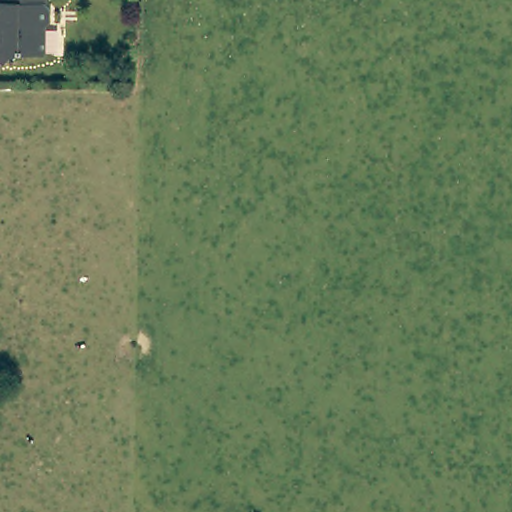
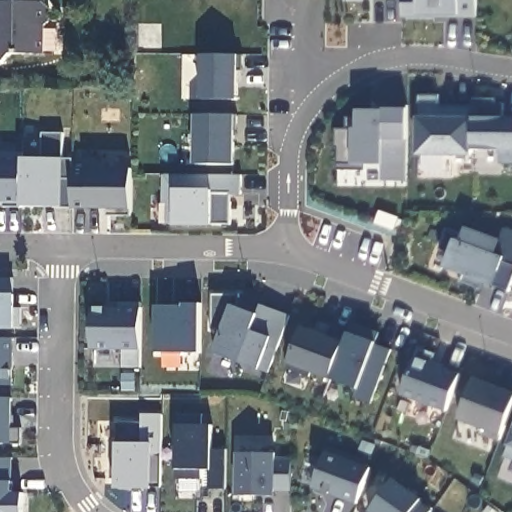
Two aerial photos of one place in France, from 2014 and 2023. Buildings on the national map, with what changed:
unchanged [(46,55),(14,55),(2,66),(0,63),(0,0),(46,0),(46,9),(49,9),(46,55)]
new [(476,20),(401,18),(401,0),(476,0),(476,20)]
new [(203,54),(245,55),(244,71),(240,71),(239,100),(203,99),(203,54)]
new [(500,152),(473,151),(473,157),(420,156),(417,156),(418,117),(419,97),(439,96),(439,107),(473,106),(473,100),(494,100),(495,105),(504,105),(502,118),(512,118),(512,165),(502,165),(500,152)]
new [(338,128),(349,128),(349,117),(360,117),(360,108),(373,108),(373,115),(383,115),(384,105),(410,106),(409,181),(384,181),(384,164),(368,164),(368,171),(340,170),(340,149),(338,149),(338,128)]
new [(234,164),(193,165),(194,113),(234,114),(234,164)]
new [(24,204),(24,159),(43,159),(43,133),(64,134),(64,159),(74,159),(74,169),(74,209),(55,208),(55,207),(23,207),(24,204)]
new [(2,158),(2,153),(24,153),(24,159),(24,204),(23,207),(23,208),(5,208),(5,203),(0,203),(0,158),(2,158)]
new [(74,169),(131,169),(131,217),(107,216),(107,209),(74,209),(74,169)]
new [(166,174),(243,175),(243,194),(227,194),(227,202),(233,203),(233,225),(170,224),(171,203),(166,203),(166,174)]
new [(487,283),(484,291),(463,283),(465,275),(447,268),(453,254),(441,250),(449,229),(467,235),(470,228),(502,240),(506,228),(512,230),(512,291),(511,292),(496,286),(487,283)]
new [(14,279),(14,302),(10,302),(9,309),(22,309),(21,329),(0,329),(0,279),(14,279)]
new [(214,294),(242,294),(241,308),(260,314),(263,305),(292,316),(271,373),(216,353),(224,333),(214,329),(214,294)]
new [(110,308),(110,303),(121,303),(143,304),(143,350),(93,350),(94,308),(110,308)]
new [(201,353),(157,352),(157,306),(185,306),(184,304),(201,304),(201,353)]
new [(350,333),(354,323),(382,334),(377,345),(393,351),(373,404),(357,398),(360,390),(333,379),(350,333)]
new [(304,327),(330,337),(334,327),(350,333),(333,379),(314,373),(312,377),(289,369),(304,327)]
new [(14,339),(13,386),(0,386),(0,339),(14,339)]
new [(446,412),(400,395),(418,349),(435,355),(432,364),(460,374),(446,412)]
new [(512,393),(512,416),(502,441),(487,436),(489,430),(461,419),(476,379),(512,393)]
new [(13,399),(13,424),(13,429),(23,429),(23,445),(0,445),(0,399),(13,399)]
new [(161,487),(153,485),(153,491),(117,491),(117,477),(112,479),(112,459),(117,457),(117,442),(117,422),(142,422),(142,413),(161,414),(161,487)]
new [(202,416),(200,425),(212,426),(212,449),(226,450),(225,489),(209,489),(211,470),(200,470),(201,479),(176,479),(177,469),(178,425),(177,413),(202,416)]
new [(512,459),(507,457),(512,445),(512,459)]
new [(328,453),(372,469),(359,504),(333,494),(333,493),(327,490),(326,492),(315,488),(328,453)]
new [(240,454),(277,454),(277,460),(293,460),(293,491),(277,491),(277,497),(240,497),(240,454)]
new [(14,459),(14,494),(25,494),(25,512),(0,512),(0,459),(14,459)]
new [(385,495),(395,481),(424,501),(421,504),(432,512),(373,512),(370,510),(382,493),(385,495)]

